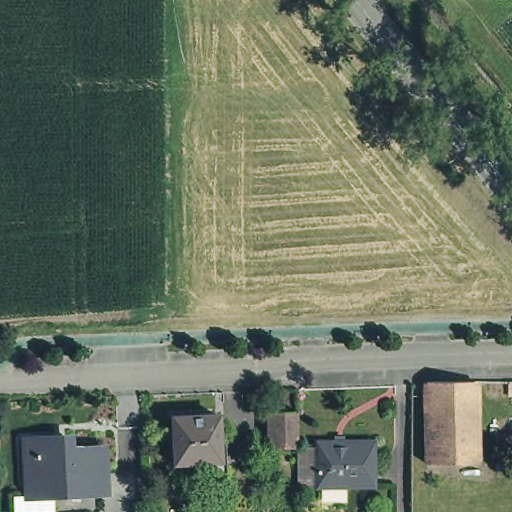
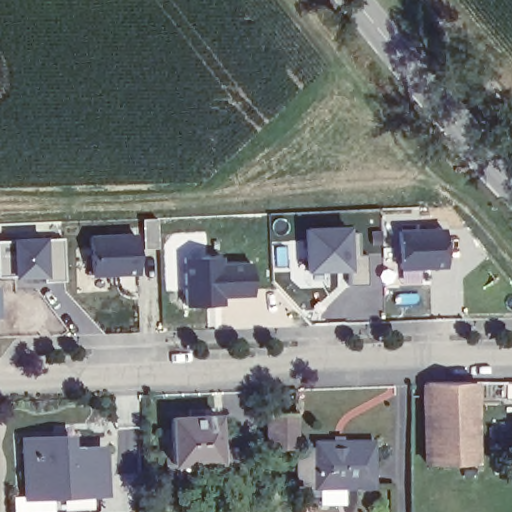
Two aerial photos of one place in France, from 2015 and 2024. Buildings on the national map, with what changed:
new [(145,251),(144,221),(161,220),(161,251),(145,251)]
new [(351,287),(350,275),(309,276),(305,230),(352,228),(354,236),(360,235),(360,257),(367,256),(370,288),(351,287)]
new [(447,270),(401,270),(399,231),(446,232),(447,270)]
new [(140,239),(144,280),(92,281),(90,240),(140,239)]
new [(17,284),(17,277),(0,277),(0,242),(65,241),(68,283),(17,284)]
new [(254,265),(255,299),(227,299),(226,311),(185,310),(183,260),(225,258),(225,266),(254,265)]
unchanged [(431,385),(470,384),(469,466),(430,466),(425,466),(425,385),(431,385)]
unchanged [(507,384),(512,384),(512,396),(507,396),(507,384)]
unchanged [(177,462),(176,417),(194,417),(194,408),(207,408),(207,416),(222,416),(224,460),(225,474),(206,475),(205,461),(177,462)]
unchanged [(296,417),(297,447),(270,447),(269,418),(296,417)]
unchanged [(26,439),(73,437),(74,449),(106,447),(107,491),(55,493),(57,511),(39,512),(29,512),(29,494),(26,439)]
unchanged [(302,475),(297,475),(297,452),(315,451),(315,444),(374,444),(374,489),(347,490),(317,491),(316,485),(303,485),(302,475)]

